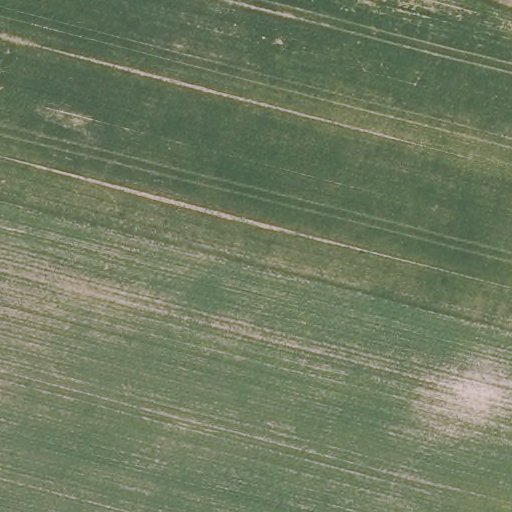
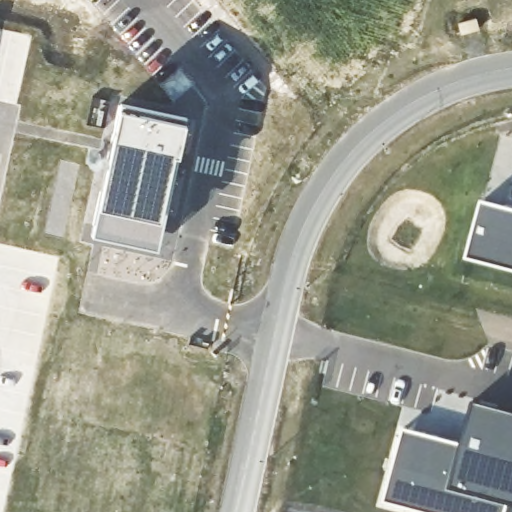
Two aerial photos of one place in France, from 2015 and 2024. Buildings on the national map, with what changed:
new [(183,121),(176,153),(173,153),(169,171),(157,247),(92,233),(119,107),(183,121)]
new [(471,256),(486,202),(512,209),(512,267),(471,256)]
new [(473,401),(512,411),(512,503),(511,503),(508,512),(424,512),(385,502),(404,427),(462,443),(473,401)]

